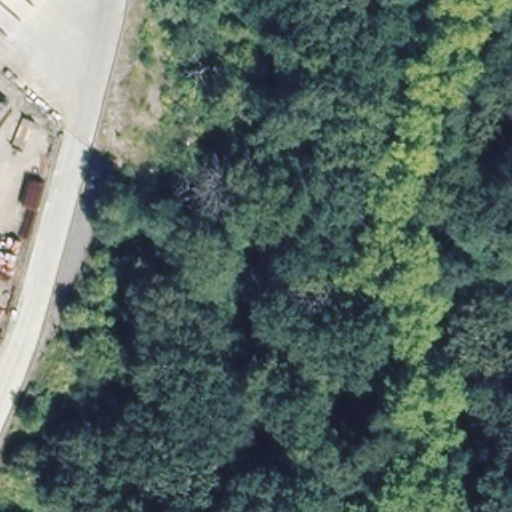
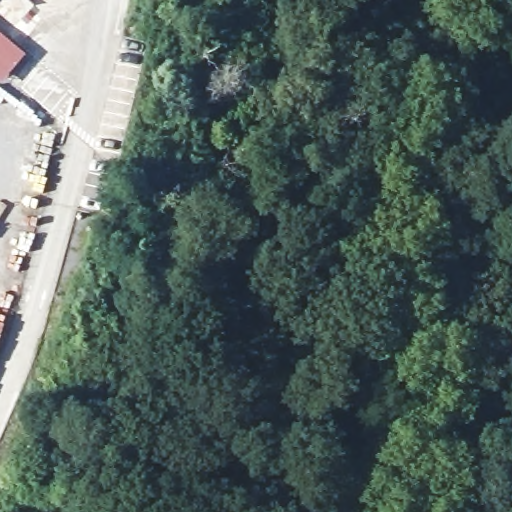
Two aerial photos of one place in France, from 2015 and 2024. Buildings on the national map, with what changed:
new [(0,86),(0,36),(25,57),(1,86),(0,86)]

